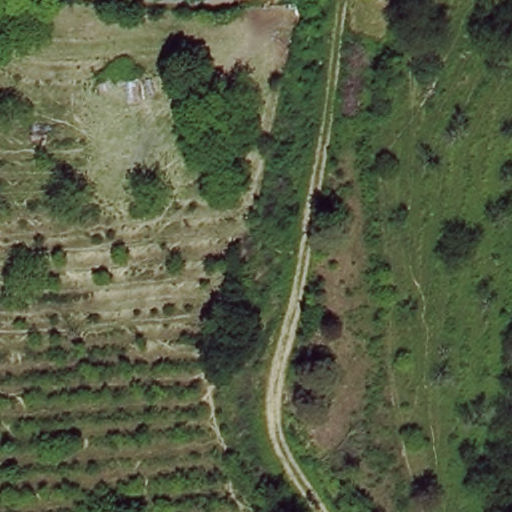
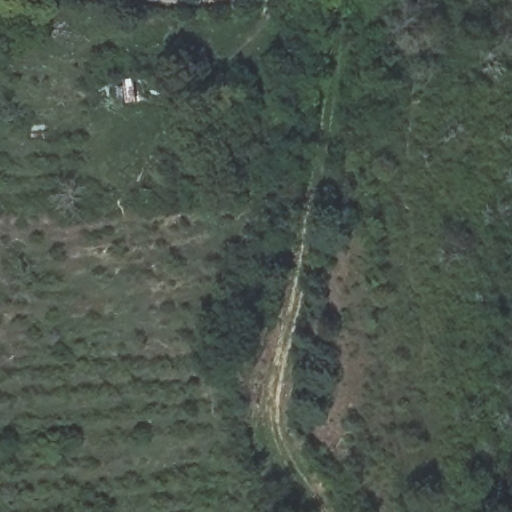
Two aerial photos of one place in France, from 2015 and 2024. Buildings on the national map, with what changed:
[]

